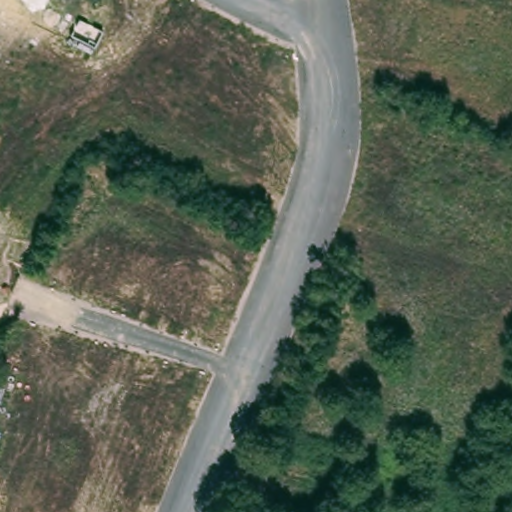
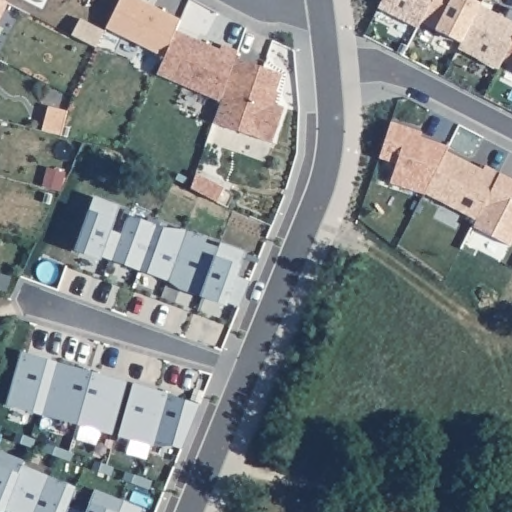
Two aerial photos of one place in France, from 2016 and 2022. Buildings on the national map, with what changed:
new [(0,16),(0,0),(5,0),(7,1),(0,16)]
new [(141,0),(180,19),(175,30),(164,56),(105,27),(119,0),(141,0)]
new [(430,0),(420,21),(417,26),(377,6),(380,0),(430,0)]
new [(479,4),(460,41),(420,21),(430,0),(476,0),(480,2),(479,4)]
new [(460,41),(479,4),(503,16),(509,6),(512,8),(512,38),(501,60),(497,67),(457,47),(460,41)]
new [(80,18),(104,30),(95,47),(71,35),(80,18)]
new [(164,56),(175,30),(219,50),(222,44),(237,51),(235,57),(220,101),(156,73),(164,56)]
new [(501,60),(512,38),(512,65),(501,60)]
new [(220,101),(235,57),(281,74),(275,91),(277,92),(273,104),(284,107),(272,142),(212,122),(220,101)]
new [(390,120),(421,130),(418,135),(448,145),(446,150),(425,191),(424,192),(389,181),(396,162),(378,156),(390,120)]
new [(446,150),(482,169),(485,164),(499,171),(475,218),(425,191),(446,150)]
new [(499,171),(512,178),(512,239),(510,244),(472,225),(475,218),(499,171)]
new [(109,231),(121,235),(126,220),(121,219),(125,210),(130,211),(127,215),(129,216),(147,222),(149,218),(167,225),(165,229),(184,236),(186,231),(205,238),(203,243),(210,245),(211,240),(220,243),(244,251),(235,276),(250,282),(240,305),(226,300),(224,303),(180,288),(181,284),(100,255),(98,259),(75,250),(94,198),(117,207),(109,231)]
new [(21,353),(127,382),(112,433),(7,403),(21,353)]
new [(132,384),(168,394),(167,396),(200,404),(182,446),(155,439),(154,445),(118,435),(132,384)]
new [(3,509),(2,512),(0,512),(0,452),(22,461),(20,468),(76,488),(67,507),(73,510),(78,512),(10,512),(3,509)]
new [(141,509),(140,512),(87,512),(96,490),(141,509)]

